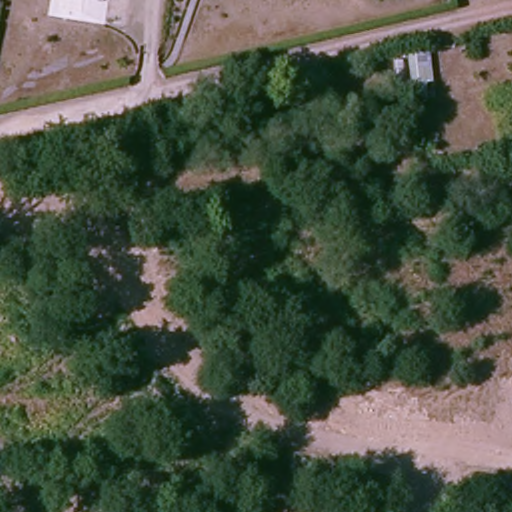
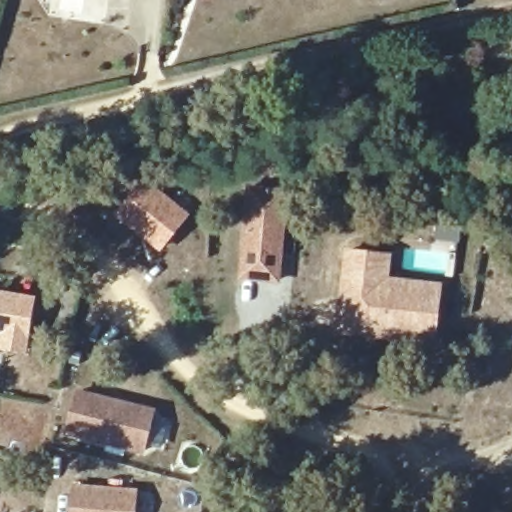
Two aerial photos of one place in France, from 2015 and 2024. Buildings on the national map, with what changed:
new [(339,171),(356,171),(356,183),(338,182),(339,171)]
new [(180,205),(178,208),(190,217),(161,252),(142,236),(145,233),(137,228),(135,231),(115,214),(145,177),(180,205)]
new [(237,278),(245,183),(289,187),(281,283),(237,278)]
new [(435,221),(460,225),(456,249),(436,247),(438,231),(433,230),(435,221)]
new [(336,331),(347,251),(388,256),(385,280),(383,299),(436,306),(431,344),(412,341),(401,340),(336,331)]
new [(385,280),(439,287),(436,306),(383,299),(385,280)]
new [(0,290),(36,296),(28,354),(0,349),(0,290)]
new [(65,434),(75,390),(157,410),(146,454),(65,434)]
new [(139,490),(137,512),(71,512),(73,484),(139,490)]
new [(500,512),(493,512),(494,510),(500,512)]

